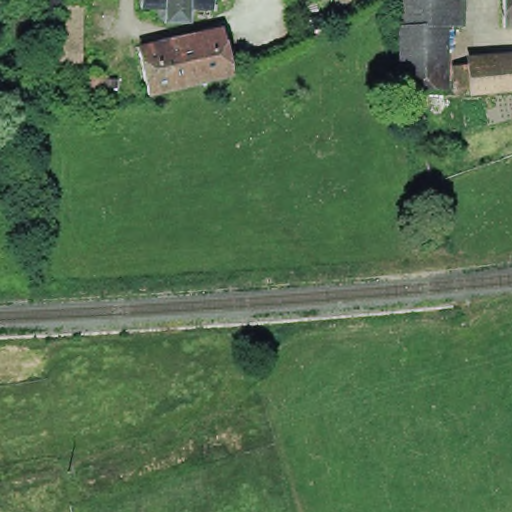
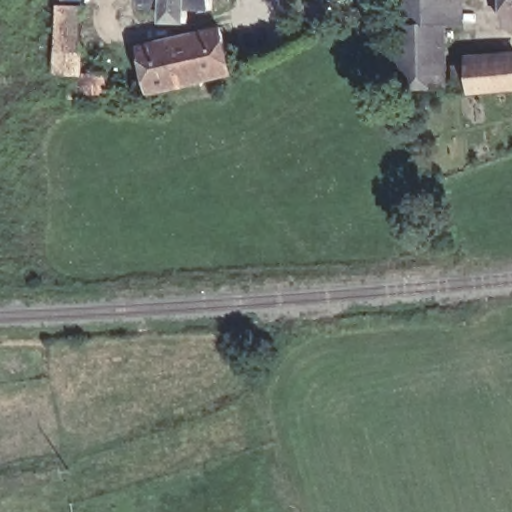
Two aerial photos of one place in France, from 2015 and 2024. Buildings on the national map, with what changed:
unchanged [(212,7),(188,5),(187,20),(165,19),(167,5),(141,4),(141,0),(212,0),(212,7)]
unchanged [(447,26),(437,26),(395,26),(396,0),(448,0),(448,1),(457,1),(457,12),(453,12),(453,17),(447,17),(447,26)]
unchanged [(512,22),(503,22),(503,0),(512,0),(512,22)]
unchanged [(105,75),(103,101),(82,100),(68,100),(70,75),(53,74),(55,51),(58,6),(83,9),(80,53),(78,75),(84,76),(85,74),(105,75)]
unchanged [(437,26),(436,49),(436,89),(395,89),(395,26),(437,26)]
unchanged [(230,71),(225,72),(200,79),(147,90),(138,46),(220,29),(230,71)]
unchanged [(470,61),(475,61),(474,54),(503,52),(503,61),(512,60),(512,86),(505,86),(470,87),(455,87),(455,61),(470,61)]

